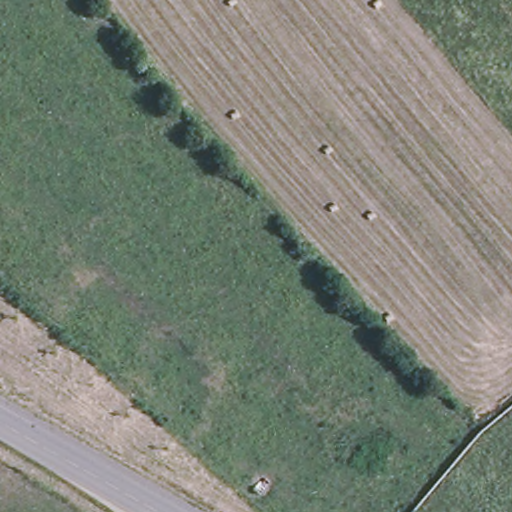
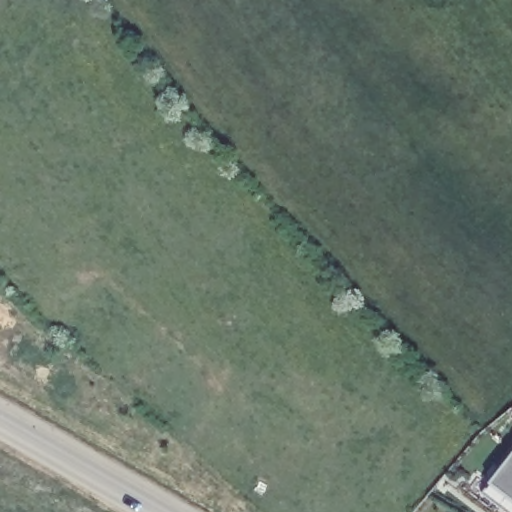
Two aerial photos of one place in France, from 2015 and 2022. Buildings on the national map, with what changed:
new [(485,478),(512,442),(512,512),(508,512),(478,488),(485,478)]

